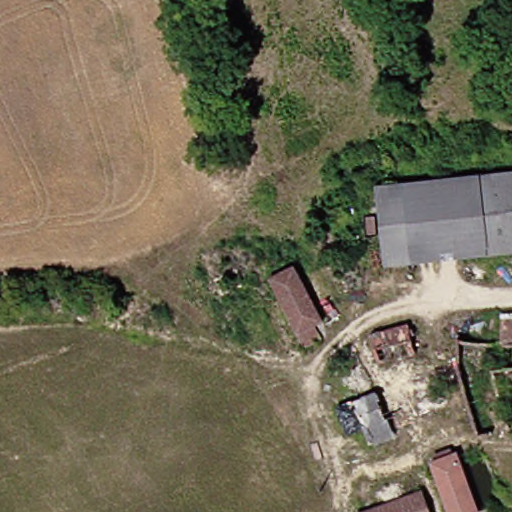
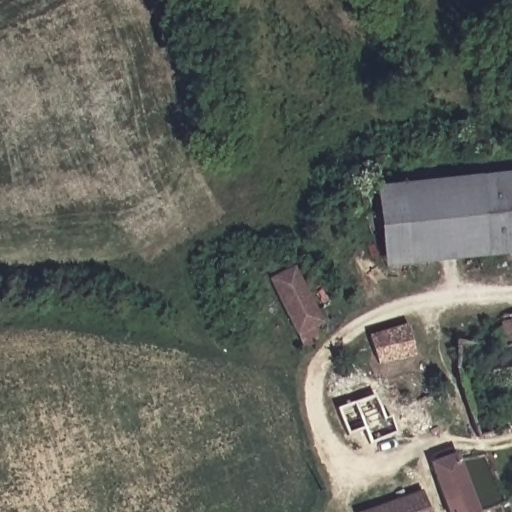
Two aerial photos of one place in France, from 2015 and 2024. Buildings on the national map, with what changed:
unchanged [(512,253),(492,255),(484,177),(512,173),(512,253)]
unchanged [(492,255),(392,266),(382,188),(484,177),(492,255)]
unchanged [(309,348),(302,334),(275,279),(298,268),(326,322),(318,325),(327,340),(309,348)]
unchanged [(415,355),(375,365),(368,336),(407,325),(415,355)]
unchanged [(389,419),(401,414),(406,413),(408,419),(415,434),(387,445),(385,441),(374,444),(368,430),(352,435),(342,409),(379,394),(389,419)]
unchanged [(436,464),(460,454),(481,512),(453,512),(436,464)]
unchanged [(427,497),(432,512),(383,512),(427,497)]

